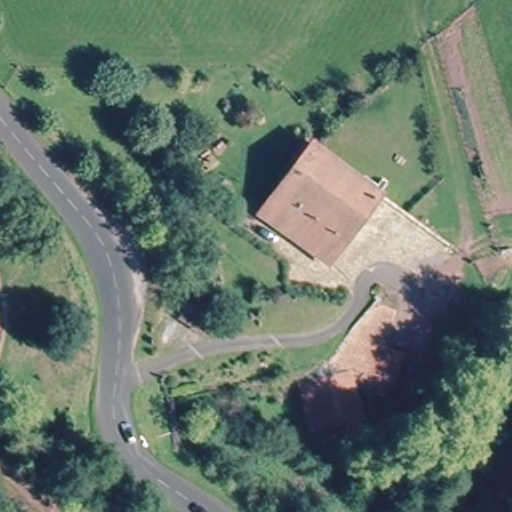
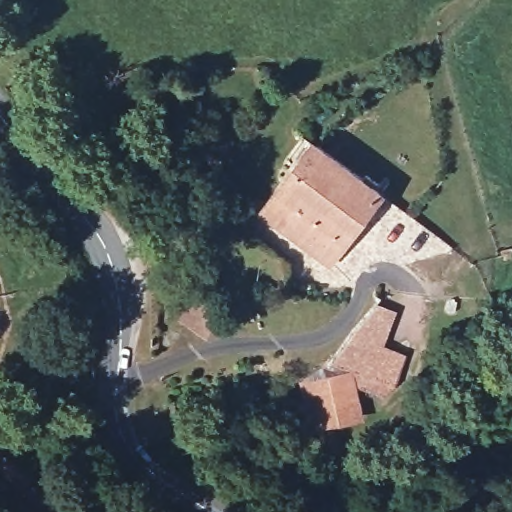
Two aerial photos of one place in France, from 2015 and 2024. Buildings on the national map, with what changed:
unchanged [(330,267),(266,220),(317,150),(380,193),(369,209),(330,267)]
unchanged [(327,374),(346,371),(334,365),(337,357),(347,334),(369,345),(382,352),(370,381),(366,395),(357,391),(364,424),(308,437),(295,385),(330,377),(327,374)]

